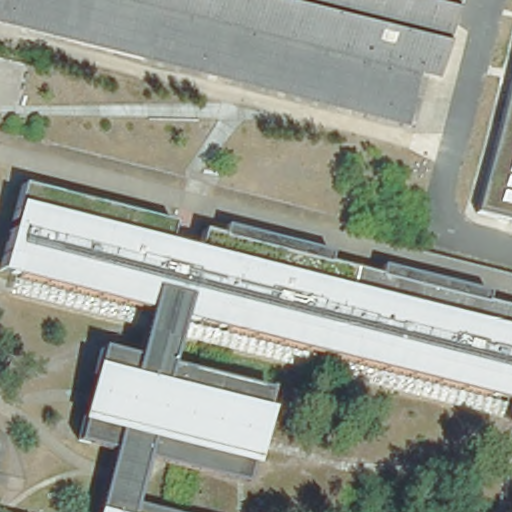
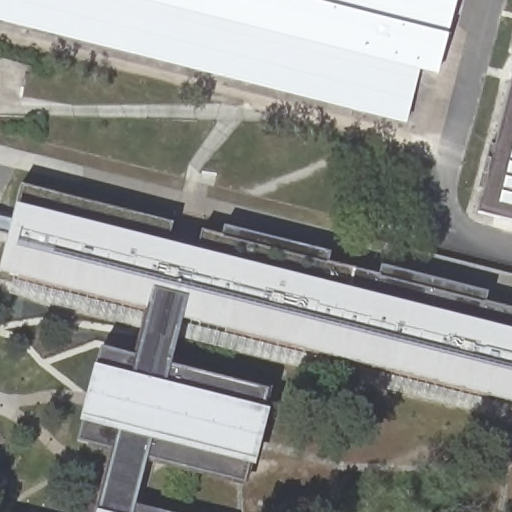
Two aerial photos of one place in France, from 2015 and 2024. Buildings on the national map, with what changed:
unchanged [(437,75),(419,70),(405,122),(0,21),(0,0),(456,0),(437,75)]
unchanged [(512,69),(512,221),(475,211),(512,69)]
unchanged [(149,243),(177,250),(184,225),(512,310),(512,425),(506,423),(511,401),(177,315),(164,363),(263,389),(239,481),(145,456),(133,503),(165,512),(95,512),(99,495),(111,448),(76,439),(100,346),(135,356),(148,307),(0,269),(0,254),(19,182),(155,217),(149,243)]

